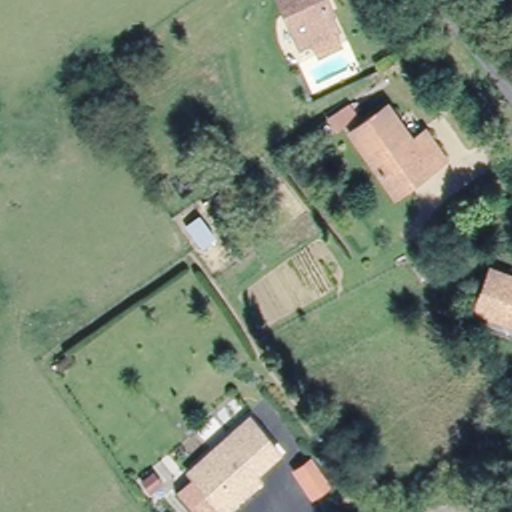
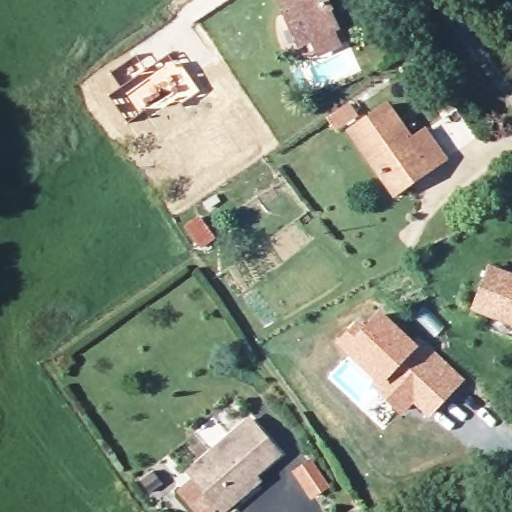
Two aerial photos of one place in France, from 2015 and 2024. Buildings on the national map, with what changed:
unchanged [(307,31),(296,37),(292,30),(276,0),(321,0),(322,0),(332,20),(327,22),(334,36),(315,46),(307,31)]
unchanged [(443,154),(393,191),(347,128),(383,102),(408,137),(422,126),(443,154)]
unchanged [(512,276),(512,322),(483,310),(499,270),(512,276)]
new [(357,318),(365,324),(380,308),(420,344),(422,341),(466,379),(428,417),(413,403),(402,415),(372,384),(375,382),(335,341),(357,318)]
unchanged [(250,420),(283,455),(264,472),(229,440),(250,420)]
unchanged [(182,493),(194,482),(189,477),(201,466),(229,440),(264,472),(259,477),(266,484),(246,502),(236,512),(223,512),(219,508),(215,512),(200,512),(182,493)]
unchanged [(312,461),(332,482),(320,493),(301,473),(312,461)]
unchanged [(162,474),(171,486),(159,495),(150,483),(162,474)]

